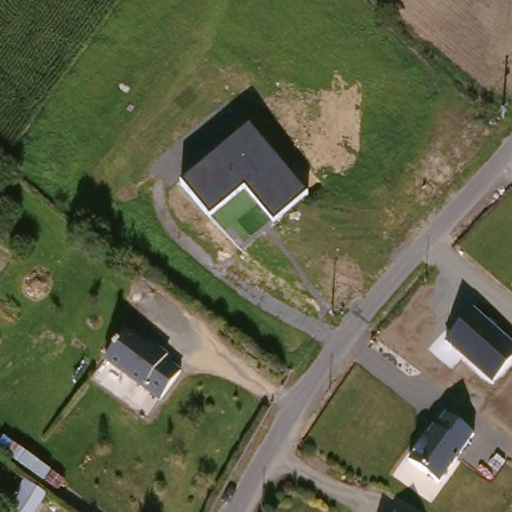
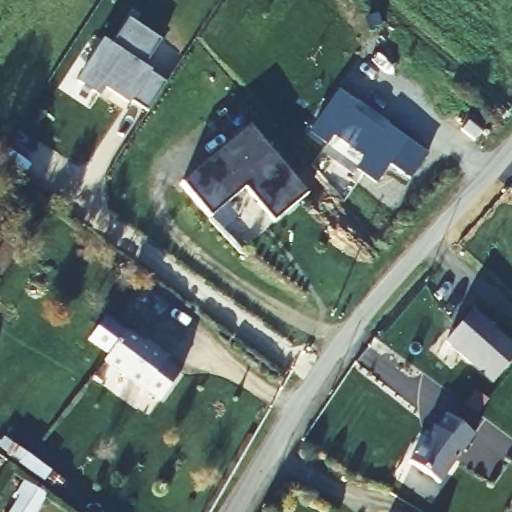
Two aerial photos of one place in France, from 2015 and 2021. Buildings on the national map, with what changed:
new [(104,44),(111,48),(129,21),(161,43),(144,70),(166,85),(147,115),(131,104),(129,105),(104,89),(99,97),(78,83),(104,44)]
new [(334,91),(351,103),(347,110),(378,132),(383,125),(403,139),(373,182),(353,168),(361,157),(329,135),(323,145),(305,132),(334,91)]
unchanged [(249,130),(306,199),(272,227),(243,193),(209,222),(180,188),(249,130)]
unchanged [(492,384),(445,343),(471,311),(512,346),(512,361),(492,384)]
unchanged [(124,331),(142,344),(145,340),(166,355),(163,359),(179,371),(158,399),(103,359),(124,331)]
unchanged [(473,432),(439,482),(408,463),(441,413),(473,432)]
unchanged [(33,512),(8,512),(16,497),(36,507),(33,512)]

